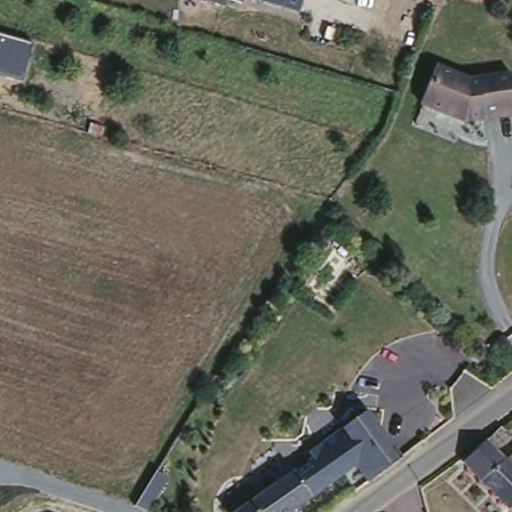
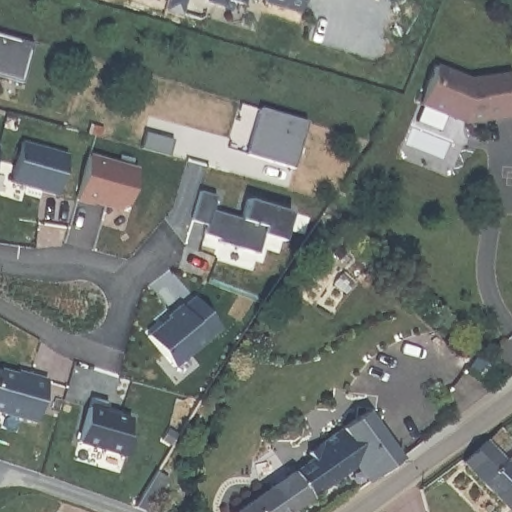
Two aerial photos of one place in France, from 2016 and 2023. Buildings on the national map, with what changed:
unchanged [(228,1),(226,8),(212,6),(206,0),(243,0),(242,5),(228,1)]
unchanged [(267,0),(301,0),(299,7),(267,0)]
unchanged [(24,80),(0,73),(0,33),(35,43),(24,80)]
unchanged [(512,85),(512,120),(468,122),(421,101),(437,64),(469,77),(512,73),(512,85)]
new [(258,109),(304,122),(293,165),(245,152),(258,109)]
new [(68,155),(57,195),(11,182),(21,142),(68,155)]
new [(134,167),(125,205),(118,210),(93,202),(92,207),(76,202),(88,154),(134,167)]
new [(215,196),(212,210),(242,221),(247,200),(289,212),(282,241),(262,236),(257,253),(217,242),(218,238),(203,234),(205,225),(190,221),(198,191),(215,196)]
new [(146,336),(169,317),(166,315),(180,303),(183,307),(193,296),(220,327),(174,367),(146,336)]
new [(0,368),(46,381),(35,423),(0,413),(0,368)]
new [(107,403),(105,410),(131,419),(127,435),(130,440),(125,457),(79,443),(90,400),(107,403)]
unchanged [(366,451),(290,512),(235,512),(313,450),(304,437),(328,418),(331,416),(342,427),(371,402),(413,452),(387,474),(366,451)]
unchanged [(488,451),(502,465),(512,454),(512,505),(509,507),(471,468),(488,451)]
demolished [(152,512),(135,512),(148,489),(161,497),(152,512)]

